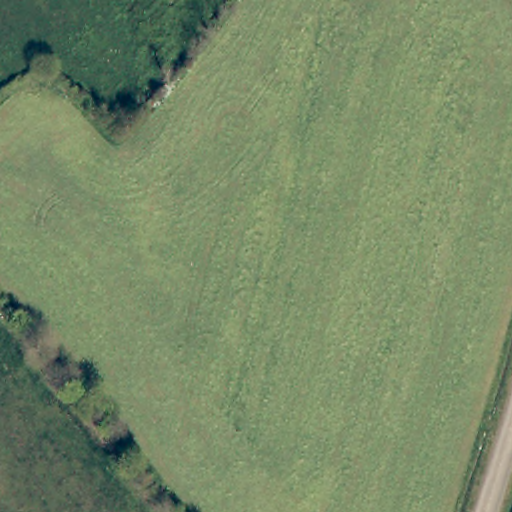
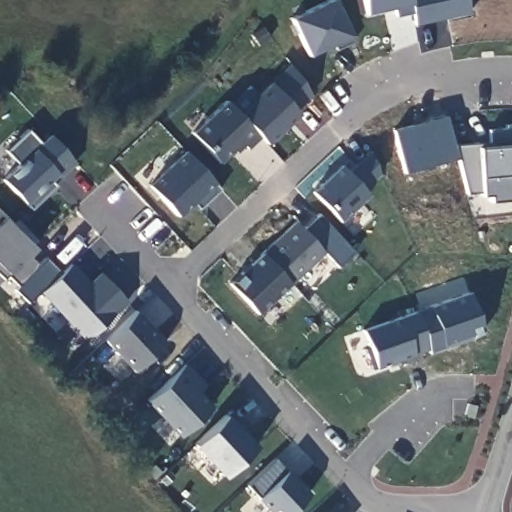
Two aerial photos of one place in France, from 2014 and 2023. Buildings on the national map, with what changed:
new [(354,42),(337,50),(335,43),(307,54),(290,16),(326,0),(334,0),(350,35),(354,42)]
new [(290,64),(311,94),(296,109),(299,113),(267,144),(239,113),(290,64)]
new [(261,137),(249,149),(242,142),(220,163),(192,133),(226,100),(261,137)]
new [(491,194),(482,194),(468,194),(455,145),(479,148),(493,147),(490,129),(507,129),(507,125),(512,125),(512,174),(512,199),(491,202),(491,194)]
new [(75,161),(59,177),(55,173),(50,179),(56,185),(31,209),(2,179),(17,164),(4,149),(27,128),(41,143),(50,134),(75,161)]
new [(209,201),(201,193),(179,215),(150,185),(186,150),(220,189),(209,201)]
new [(341,164),(346,171),(370,150),(381,174),(365,190),(369,194),(342,222),(312,190),(341,164)]
new [(34,248),(28,254),(38,265),(18,284),(6,274),(3,279),(0,276),(0,216),(34,248)]
new [(262,253),(296,221),(325,253),(292,284),(262,253)]
new [(291,283),(258,314),(230,284),(262,253),(291,283)]
new [(70,263),(82,276),(76,282),(83,290),(101,273),(128,301),(87,339),(41,290),(70,263)]
new [(137,310),(166,342),(135,371),(105,339),(137,310)]
new [(429,349),(414,354),(415,358),(399,364),(398,360),(373,369),(365,349),(369,348),(363,330),(416,312),(429,349)]
new [(205,386),(198,392),(190,384),(212,407),(181,436),(147,400),(185,364),(197,377),(205,386)]
new [(474,418),(468,417),(471,404),(477,406),(474,418)]
new [(240,423),(236,426),(255,447),(225,476),(195,445),(229,412),(240,423)]
new [(287,469),(311,494),(291,512),(270,512),(258,499),(248,486),(275,459),(287,469)]

